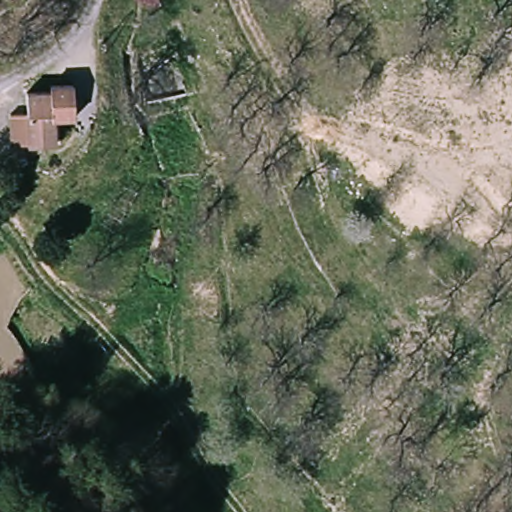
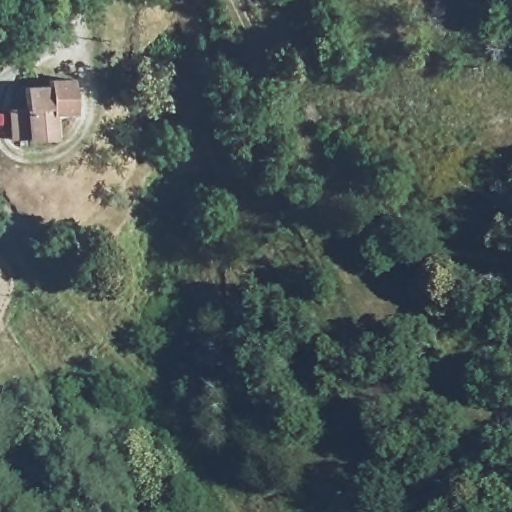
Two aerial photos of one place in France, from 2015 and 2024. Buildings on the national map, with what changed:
unchanged [(70,117),(54,117),(53,141),(25,140),(8,139),(10,107),(26,108),(26,85),(46,85),(46,78),(71,81),(70,117)]

